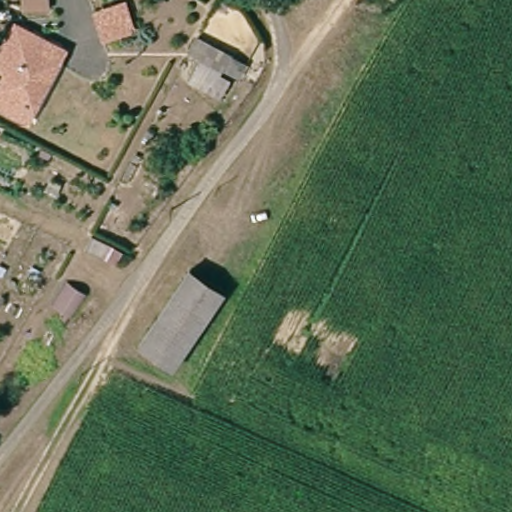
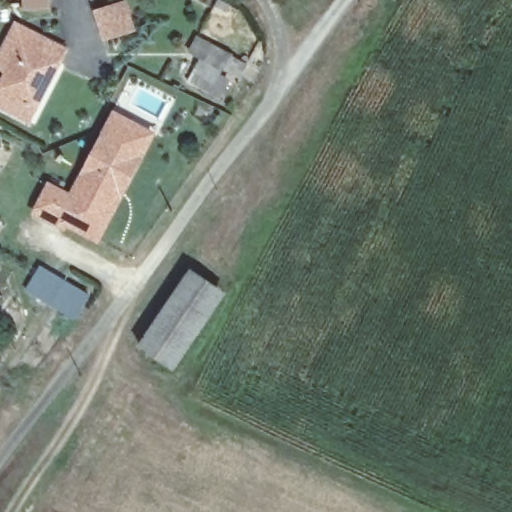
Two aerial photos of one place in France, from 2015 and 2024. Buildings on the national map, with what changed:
unchanged [(18,18),(14,0),(34,0),(37,15),(18,18)]
unchanged [(125,28),(100,40),(88,14),(113,2),(125,28)]
unchanged [(62,56),(28,126),(0,112),(0,97),(6,85),(0,83),(0,53),(1,52),(11,31),(62,56)]
unchanged [(236,78),(224,101),(190,85),(202,61),(188,54),(199,39),(248,66),(242,80),(236,78)]
new [(156,132),(99,242),(68,227),(65,232),(29,214),(48,179),(70,190),(113,111),(156,132)]
demolished [(98,260),(79,251),(86,237),(105,246),(98,260)]
unchanged [(230,293),(177,373),(140,348),(193,268),(230,293)]
new [(77,320),(26,292),(32,281),(37,284),(45,270),(90,295),(77,320)]

